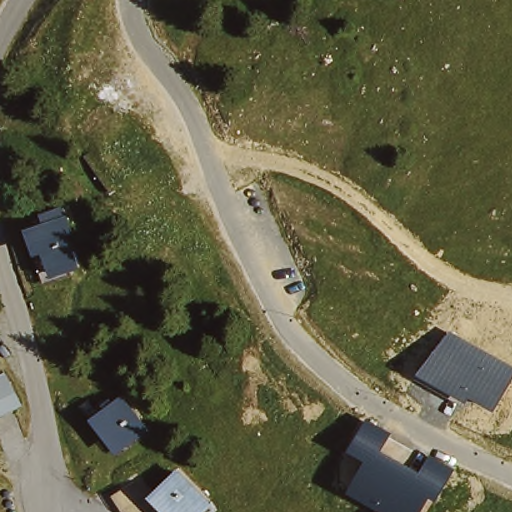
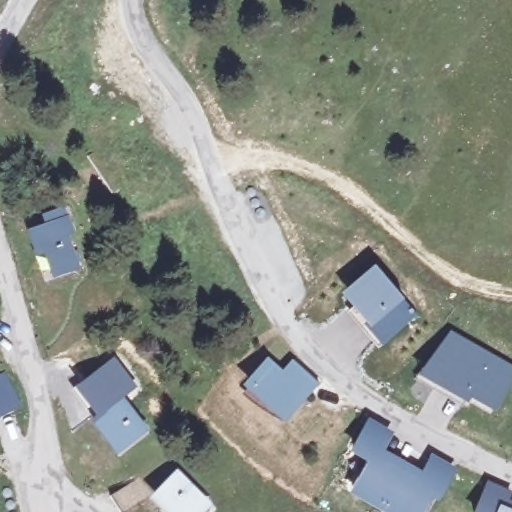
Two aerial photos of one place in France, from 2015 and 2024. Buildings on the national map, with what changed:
unchanged [(70,229),(62,233),(77,266),(57,276),(42,243),(37,245),(30,231),(48,221),(54,218),(49,209),(57,205),(63,218),(70,229)]
new [(362,323),(365,321),(342,292),(375,265),(404,299),(417,316),(382,346),(362,323)]
unchanged [(495,411),(470,397),(467,402),(418,374),(450,331),(512,367),(512,381),(495,411)]
new [(320,383),(285,423),(242,386),(267,358),(282,371),(292,360),(320,383)]
unchanged [(19,405),(0,414),(0,377),(5,374),(19,405)]
unchanged [(118,401),(138,436),(115,451),(95,414),(118,401)]
unchanged [(367,462),(348,450),(368,419),(393,434),(384,450),(420,473),(432,456),(456,469),(438,501),(430,497),(422,512),(385,512),(349,492),(367,462)]
unchanged [(168,475),(174,470),(206,500),(195,512),(176,512),(154,491),(123,512),(121,512),(110,493),(158,460),(168,475)]
new [(512,491),(512,494),(510,500),(512,502),(512,512),(474,512),(488,481),(512,491)]

